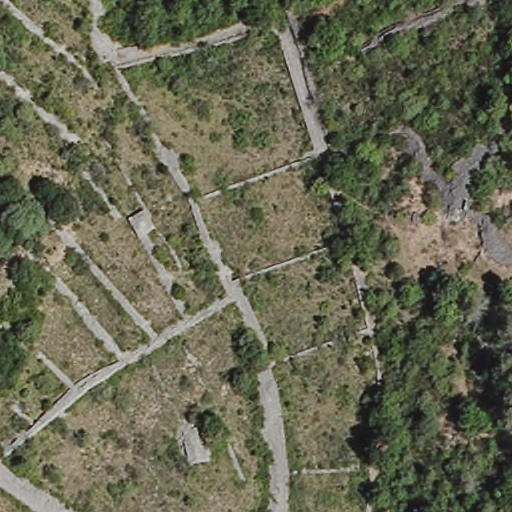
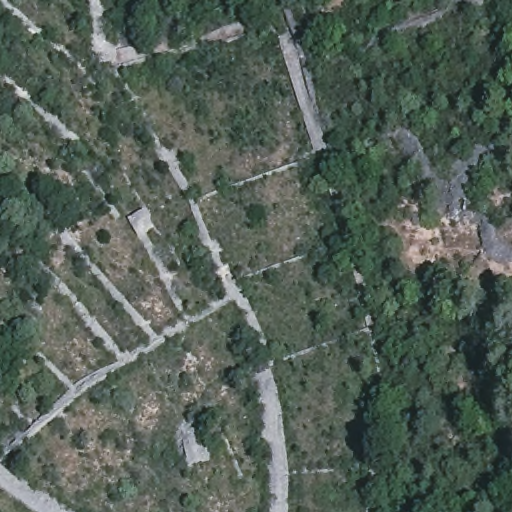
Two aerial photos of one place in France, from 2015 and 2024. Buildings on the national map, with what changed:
unchanged [(151,224),(139,232),(129,217),(143,208),(151,224)]

